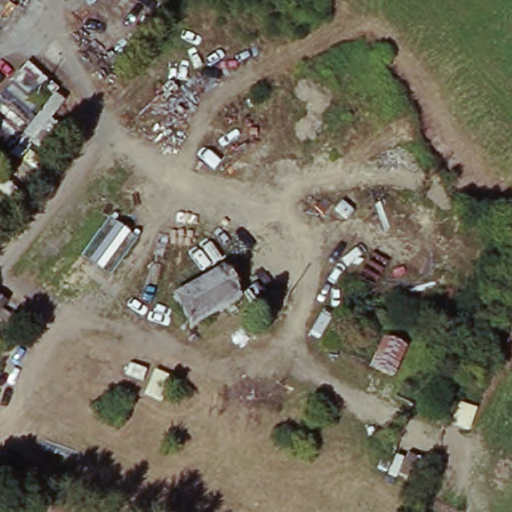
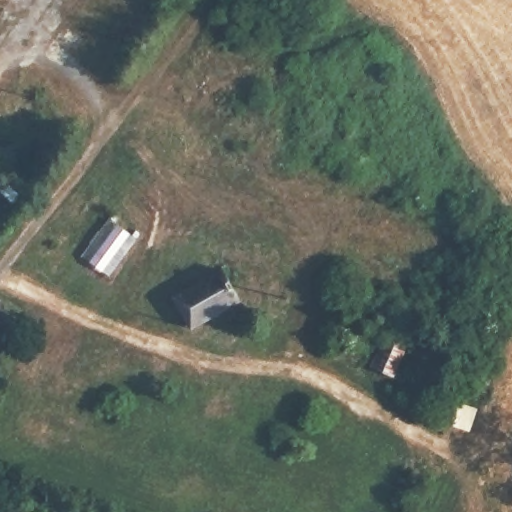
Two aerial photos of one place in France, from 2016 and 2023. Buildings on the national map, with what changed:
unchanged [(190,331),(171,299),(217,272),(236,303),(190,331)]
unchanged [(10,313),(0,328),(0,329),(0,306),(10,313)]
unchanged [(407,353),(394,382),(375,373),(387,345),(407,353)]

